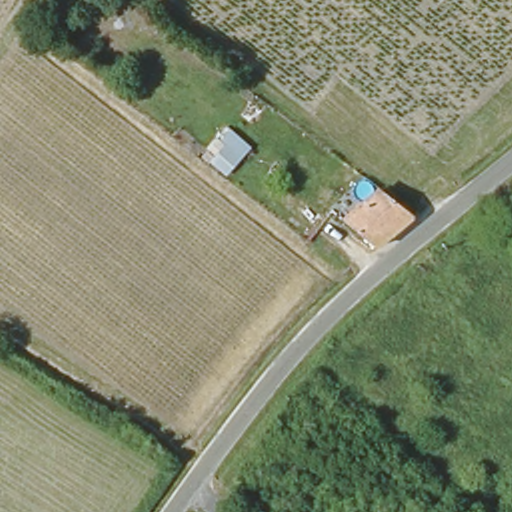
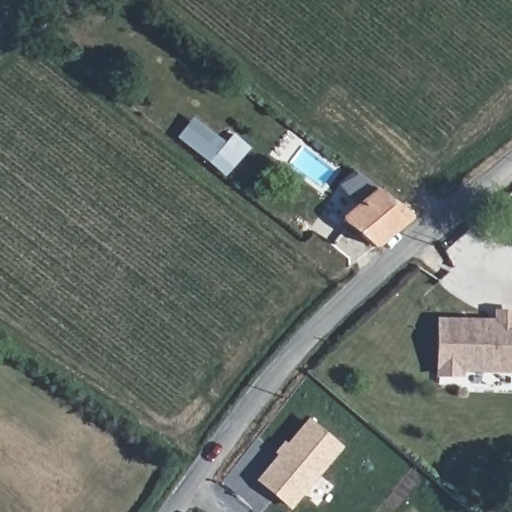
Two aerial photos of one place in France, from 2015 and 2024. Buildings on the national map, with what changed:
unchanged [(226,177),(209,162),(225,143),(221,139),(230,129),(251,147),(226,177)]
unchanged [(374,192),(412,223),(375,252),(337,222),(374,192)]
new [(464,373),(464,379),(437,379),(438,318),(494,319),(494,310),(512,310),(512,374),(464,373)]
new [(308,418),(343,448),(290,511),(255,481),(308,418)]

